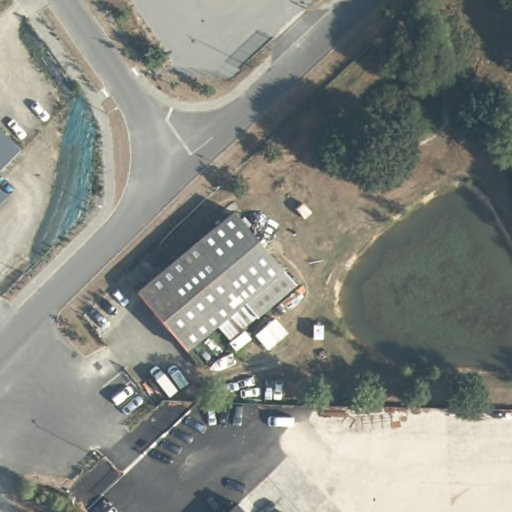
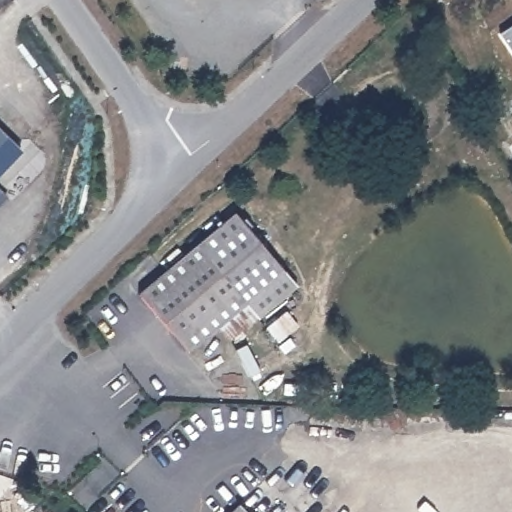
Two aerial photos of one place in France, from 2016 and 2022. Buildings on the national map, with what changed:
new [(512,52),(498,32),(512,24),(512,52)]
unchanged [(23,152),(0,177),(0,129),(23,152)]
unchanged [(0,208),(0,186),(9,193),(11,196),(0,208)]
unchanged [(233,209),(281,266),(244,297),(255,311),(229,334),(217,321),(186,346),(140,291),(233,209)]
unchanged [(240,497),(254,512),(237,512),(231,505),(240,497)]
unchanged [(224,512),(231,505),(237,512),(224,512)]

